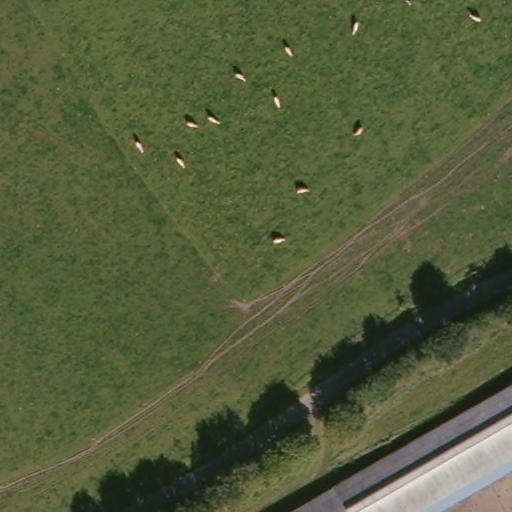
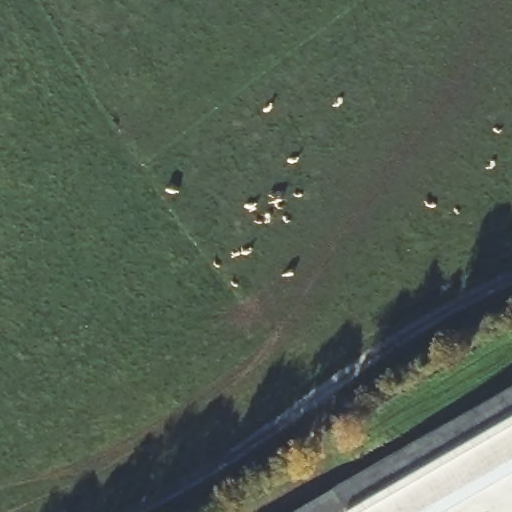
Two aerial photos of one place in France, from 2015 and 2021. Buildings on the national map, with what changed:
unchanged [(437,512),(284,512),(512,386),(512,468),(437,512)]

